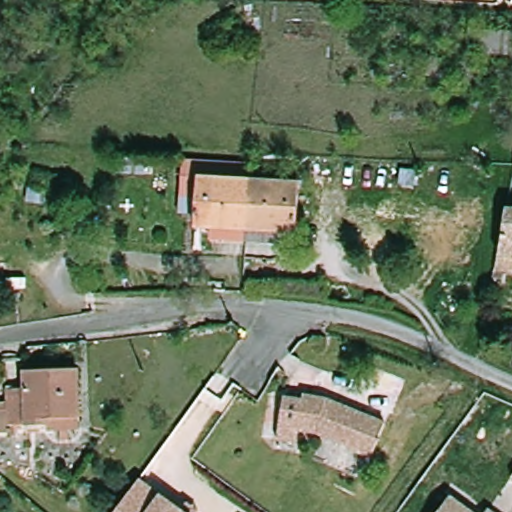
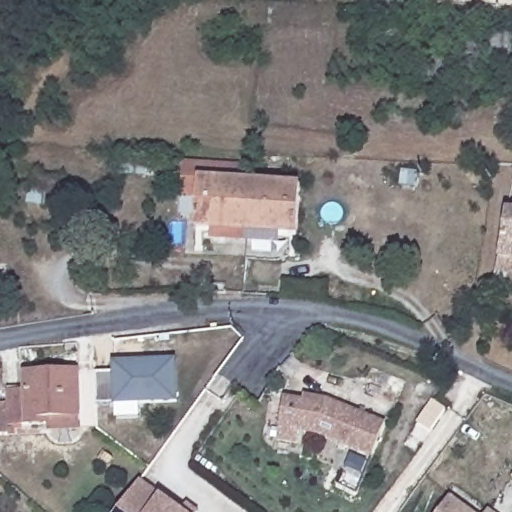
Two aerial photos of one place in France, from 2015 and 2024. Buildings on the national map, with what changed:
unchanged [(417,2),(392,1),(392,0),(425,0),(425,3),(417,2)]
unchanged [(467,30),(512,32),(512,56),(466,53),(467,30)]
unchanged [(220,239),(220,230),(202,229),(203,215),(185,214),(187,177),(188,161),(254,165),(253,181),(304,183),(301,234),(281,233),(280,242),(220,239)]
unchanged [(502,262),(506,237),(509,237),(511,210),(512,210),(512,276),(500,276),(502,262)]
new [(117,372),(117,362),(179,359),(181,401),(101,405),(100,373),(117,372)]
unchanged [(4,387),(0,387),(0,361),(3,361),(4,387)]
unchanged [(13,435),(0,435),(0,414),(12,414),(11,392),(28,391),(27,374),(81,371),(84,422),(13,425),(13,435)]
unchanged [(307,394),(308,389),(331,394),(389,418),(375,451),(321,428),(305,425),(303,438),(280,433),(288,391),(307,394)]
new [(445,413),(430,433),(418,424),(432,404),(445,413)]
unchanged [(512,485),(507,482),(512,475),(512,485)]
unchanged [(181,512),(187,504),(198,512),(116,512),(135,486),(139,481),(181,512)]
unchanged [(451,495),(474,512),(439,512),(451,495)]
unchanged [(488,510),(492,512),(487,512),(488,510)]

